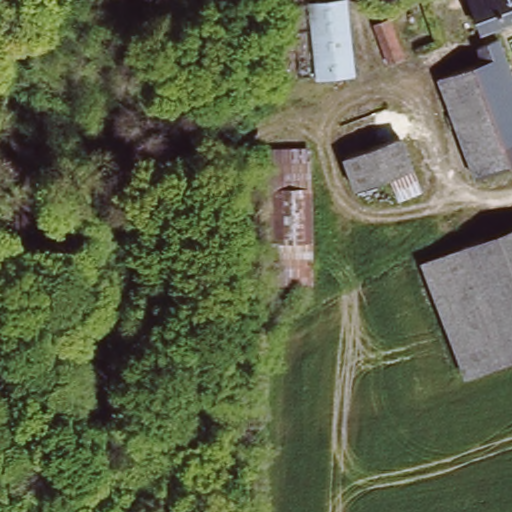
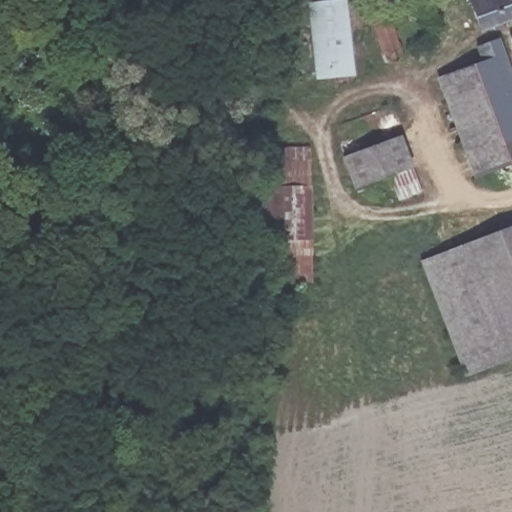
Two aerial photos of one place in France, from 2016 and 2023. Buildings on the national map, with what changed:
unchanged [(488,28),(478,0),(512,0),(512,20),(488,28)]
unchanged [(339,3),(349,74),(313,81),(304,8),(339,3)]
unchanged [(386,17),(399,59),(386,64),(373,22),(386,17)]
unchanged [(479,47),(497,41),(512,87),(512,162),(472,177),(437,80),(485,63),(479,47)]
unchanged [(394,198),(386,175),(350,186),(341,158),(400,140),(410,167),(418,190),(394,198)]
unchanged [(267,263),(267,237),(267,186),(267,163),(267,149),(303,149),(303,164),(303,187),(303,238),(303,263),(302,284),(267,284),(267,263)]
unchanged [(495,270),(512,312),(512,355),(465,374),(423,263),(512,228),(512,263),(495,270)]
unchanged [(512,263),(512,312),(495,270),(512,263)]

